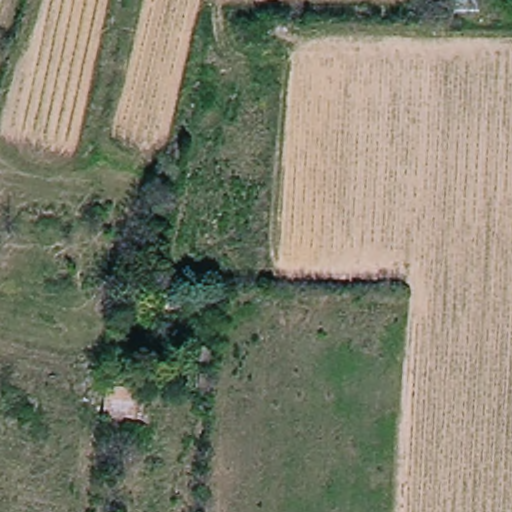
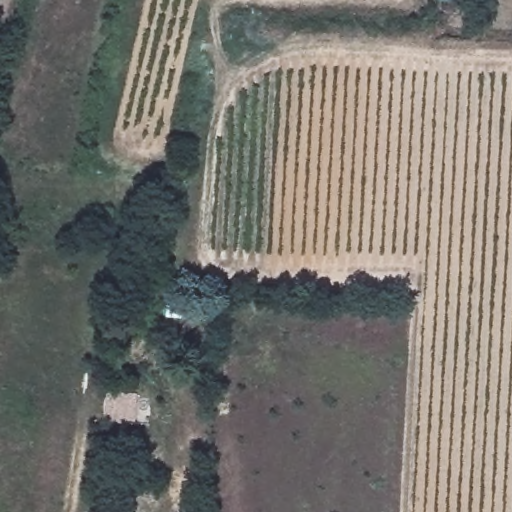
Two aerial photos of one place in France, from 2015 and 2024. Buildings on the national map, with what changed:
unchanged [(113,388),(137,391),(134,422),(111,420),(113,388)]

